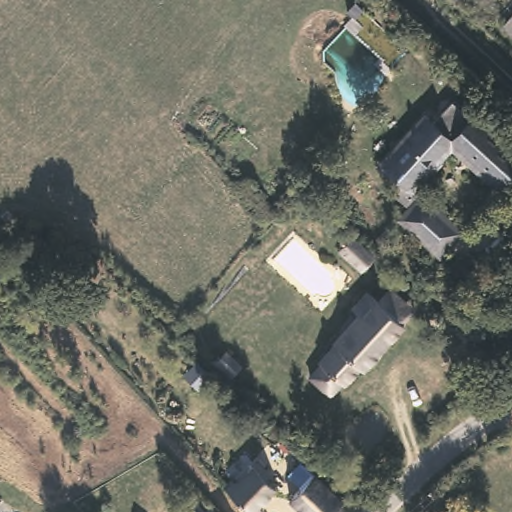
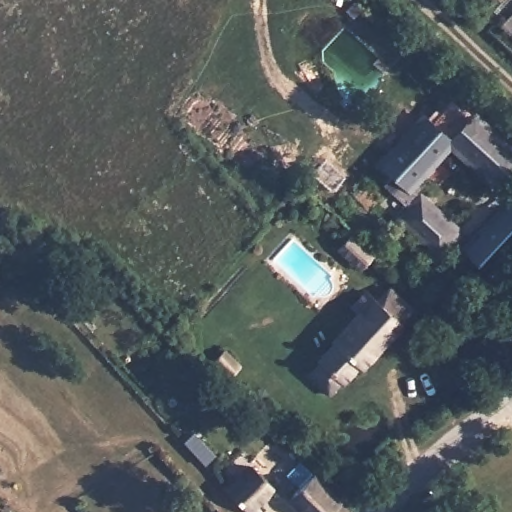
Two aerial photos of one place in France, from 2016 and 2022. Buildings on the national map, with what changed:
unchanged [(501,19),(512,9),(512,29),(501,19)]
unchanged [(471,126),(474,124),(512,159),(512,179),(497,196),(448,151),(440,162),(440,165),(427,181),(422,182),(408,198),(455,242),(439,260),(405,227),(412,217),(393,201),(398,193),(382,180),(392,166),(398,171),(407,159),(403,156),(426,129),(433,134),(454,111),(471,126)]
unchanged [(375,261),(363,275),(340,255),(352,241),(375,261)]
unchanged [(352,381),(349,378),(334,397),(329,393),(317,407),(297,387),(309,375),(306,372),(350,323),(342,316),(356,299),(366,308),(377,296),(403,320),(392,332),(395,334),(352,381)]
unchanged [(512,322),(512,337),(506,343),(471,310),(484,296),(512,322)]
unchanged [(209,375),(197,386),(185,373),(195,362),(209,375)]
unchanged [(231,480),(235,485),(254,467),(274,489),(255,506),(260,511),(258,512),(247,512),(224,487),(231,480)]
unchanged [(353,507),(348,512),(300,512),(288,500),(313,474),(353,507)]
unchanged [(218,510),(220,512),(216,512),(218,510)]

